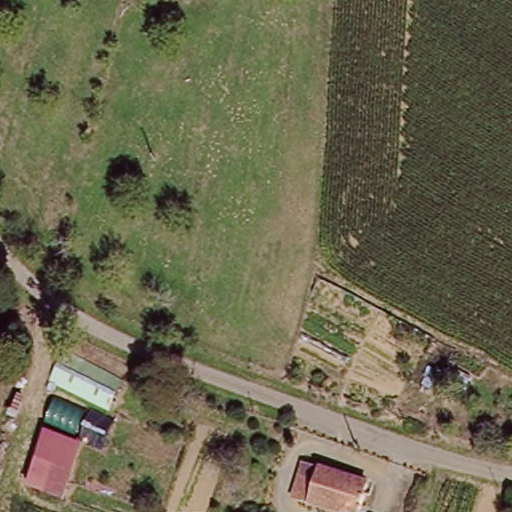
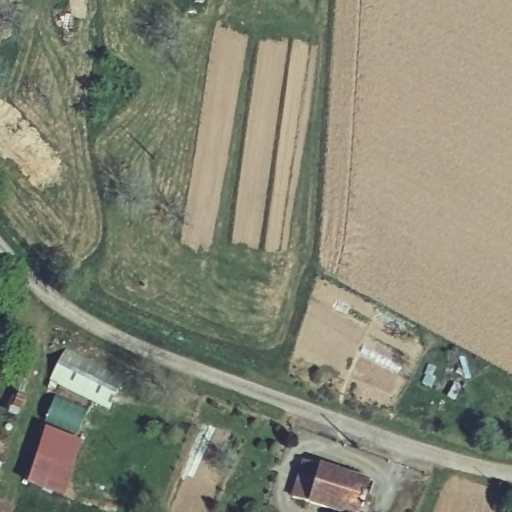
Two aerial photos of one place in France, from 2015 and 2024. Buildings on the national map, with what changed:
unchanged [(126,376),(115,411),(120,417),(107,443),(49,418),(64,388),(55,385),(66,351),(126,376)]
unchanged [(50,426),(87,442),(67,500),(31,485),(50,426)]
unchanged [(341,510),(300,497),(310,462),(376,480),(374,490),(376,490),(372,505),(369,504),(366,512),(340,512),(341,510)]

